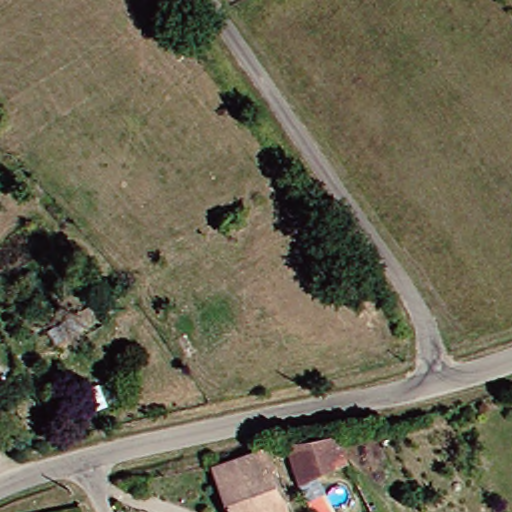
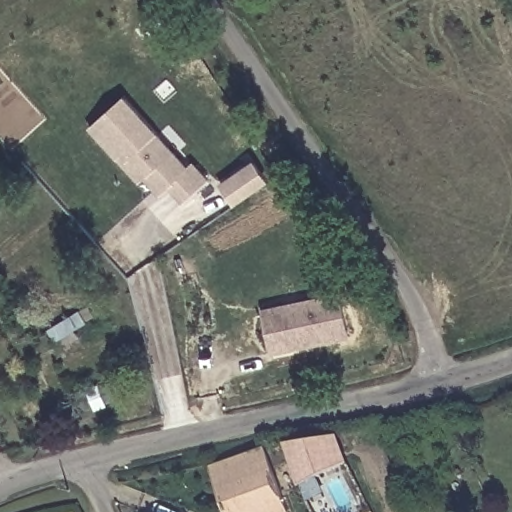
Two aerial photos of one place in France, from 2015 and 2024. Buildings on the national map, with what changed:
new [(116,158),(89,128),(123,97),(186,169),(191,164),(206,180),(181,202),(168,187),(158,195),(143,177),(138,183),(116,158)]
new [(250,160),(264,180),(232,204),(217,183),(250,160)]
new [(342,290),(351,337),(271,353),(261,308),(342,290)]
unchanged [(69,317),(80,335),(61,348),(49,330),(69,317)]
unchanged [(327,436),(337,462),(289,484),(275,444),(327,436)]
unchanged [(280,512),(217,512),(200,466),(256,446),(280,512)]

